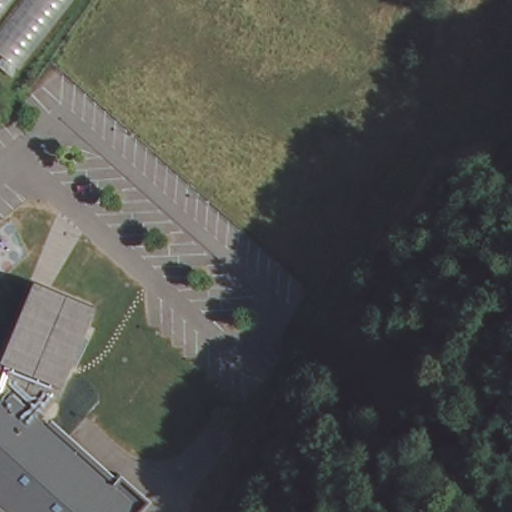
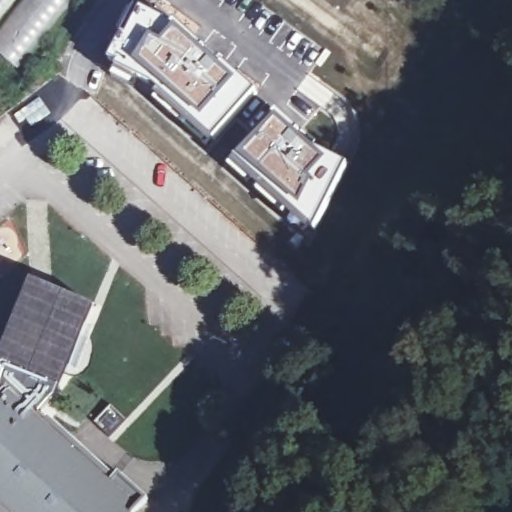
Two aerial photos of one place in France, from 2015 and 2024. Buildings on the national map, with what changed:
unchanged [(0,64),(0,26),(19,0),(84,0),(22,80),(0,64)]
new [(140,6),(182,29),(237,75),(257,94),(210,148),(165,114),(135,87),(111,73),(115,67),(106,62),(140,6)]
new [(38,95),(51,112),(30,127),(25,120),(20,123),(13,113),(38,95)]
new [(241,141),(273,108),(318,145),(316,147),(348,166),(322,222),(313,234),(287,216),(283,221),(221,167),(241,141)]
unchanged [(78,306),(42,396),(20,377),(0,399),(0,317),(15,282),(78,306)]
unchanged [(42,396),(50,405),(47,408),(121,475),(125,471),(152,497),(138,512),(7,512),(0,506),(0,399),(20,377),(42,396)]

